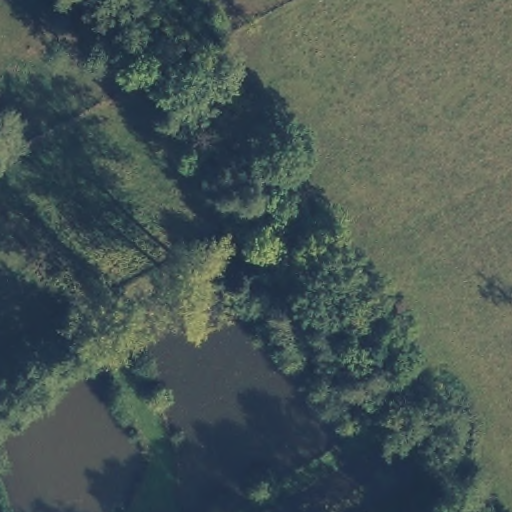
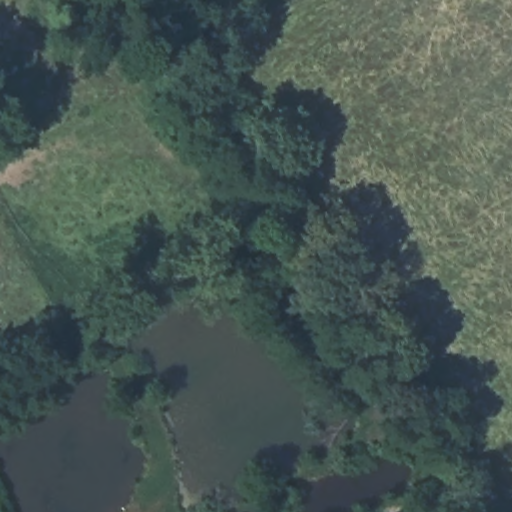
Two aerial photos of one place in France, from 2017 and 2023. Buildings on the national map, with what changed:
[]

